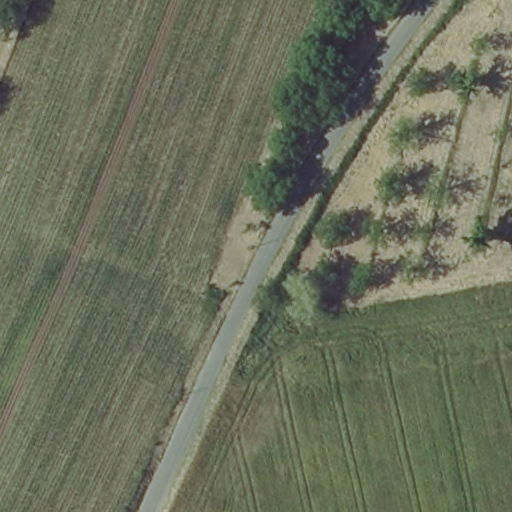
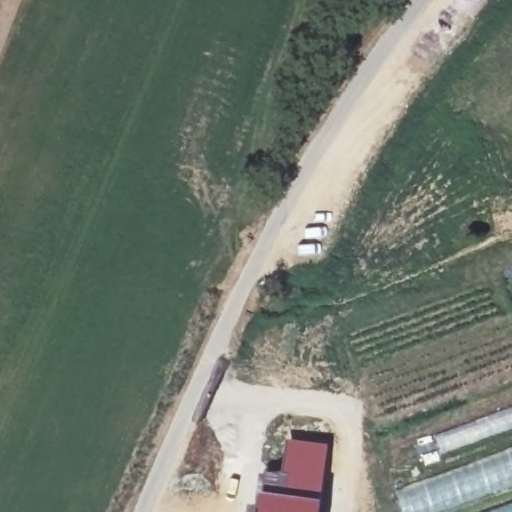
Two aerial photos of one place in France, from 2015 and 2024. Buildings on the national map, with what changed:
new [(282,472),(287,437),(328,442),(320,512),(257,512),(261,470),(282,472)]
new [(442,512),(402,512),(396,490),(512,447),(512,486),(442,512)]
new [(490,512),(512,504),(512,512),(490,512)]

